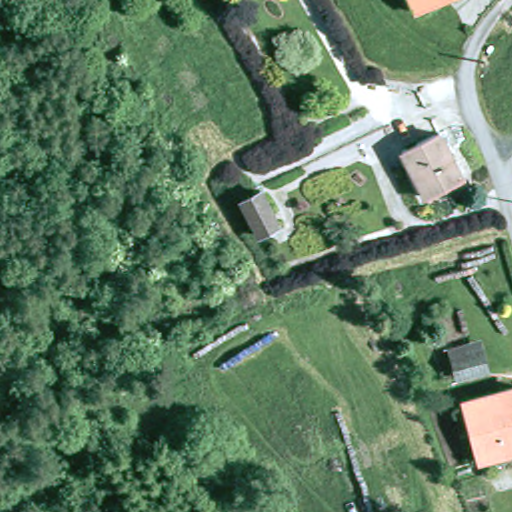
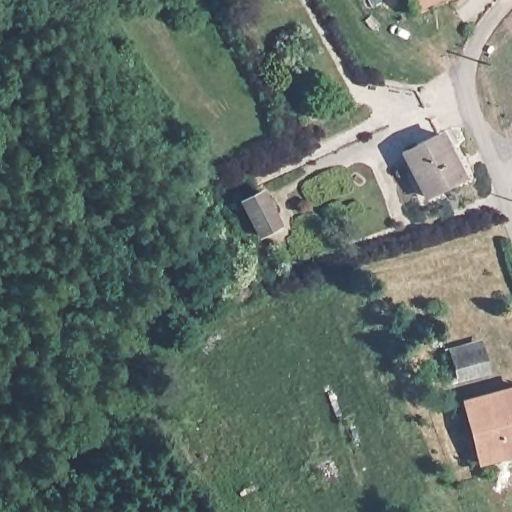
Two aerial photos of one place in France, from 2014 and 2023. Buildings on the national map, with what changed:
unchanged [(406,0),(435,0),(411,11),(406,0)]
unchanged [(458,172),(422,190),(399,146),(435,126),(458,172)]
unchanged [(251,187),(270,222),(253,230),(235,194),(251,187)]
unchanged [(452,363),(480,354),(486,374),(457,382),(452,363)]
unchanged [(458,401),(512,386),(512,407),(501,409),(507,431),(512,429),(512,431),(512,451),(474,461),(458,401)]

